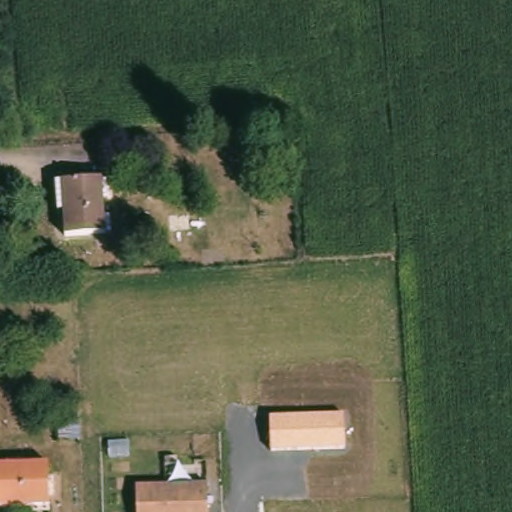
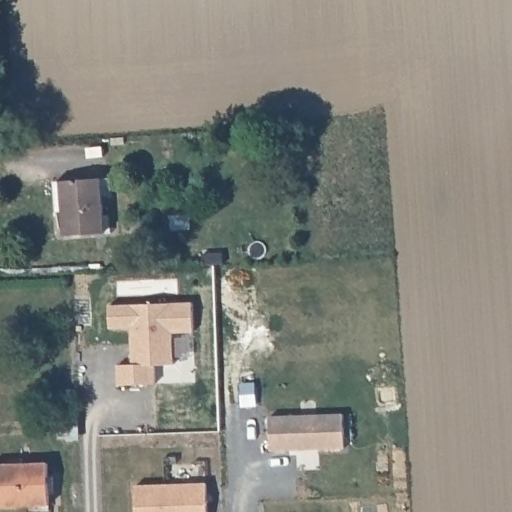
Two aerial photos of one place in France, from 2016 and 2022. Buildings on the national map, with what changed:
unchanged [(63,236),(61,179),(101,178),(104,233),(63,236)]
new [(171,332),(173,363),(155,364),(156,383),(119,385),(117,365),(132,364),(132,328),(110,328),(110,305),(192,303),(194,330),(171,332)]
unchanged [(344,412),(345,447),(271,450),(269,413),(344,412)]
unchanged [(50,467),(51,507),(0,510),(0,469),(50,467)]
unchanged [(216,512),(145,512),(145,494),(216,493),(216,512)]

